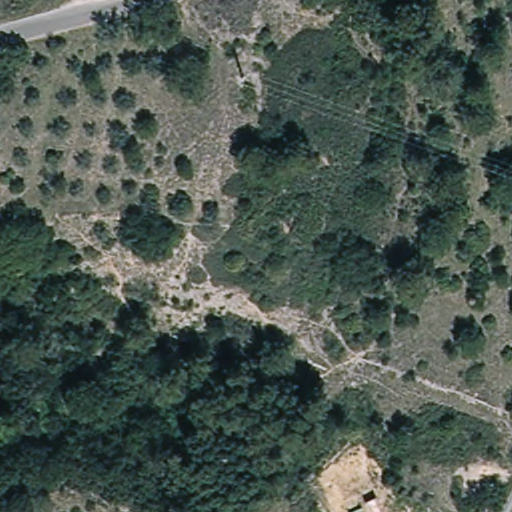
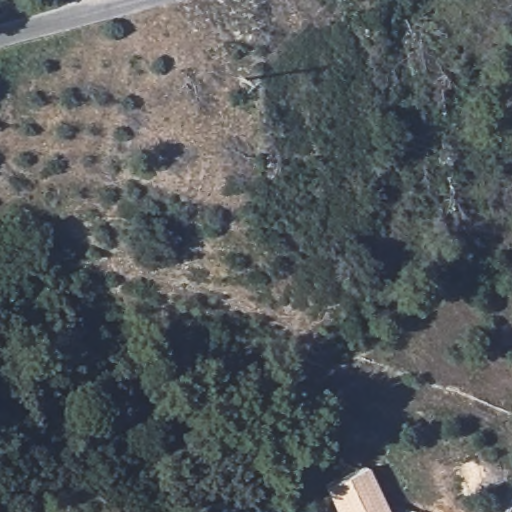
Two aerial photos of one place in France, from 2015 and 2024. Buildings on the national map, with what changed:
new [(368,467),(388,512),(339,512),(328,487),(368,467)]

